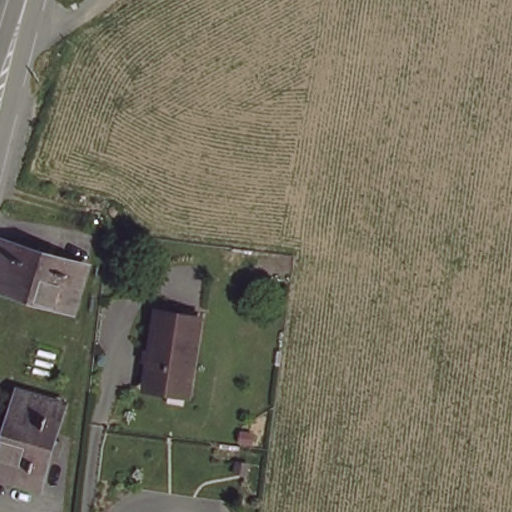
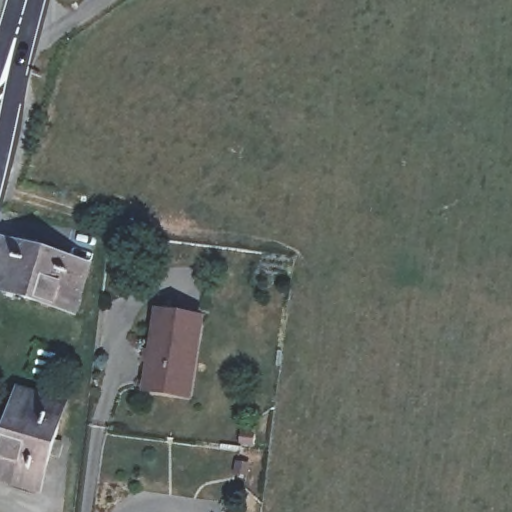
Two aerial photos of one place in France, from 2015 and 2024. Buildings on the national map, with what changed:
unchanged [(0,287),(0,252),(4,238),(40,249),(42,240),(57,245),(55,254),(90,265),(76,310),(0,287)]
unchanged [(169,392),(144,389),(154,310),(197,315),(189,383),(187,395),(169,392)]
unchanged [(50,455),(40,491),(0,479),(0,453),(20,389),(65,404),(55,439),(64,441),(59,458),(50,455)]

